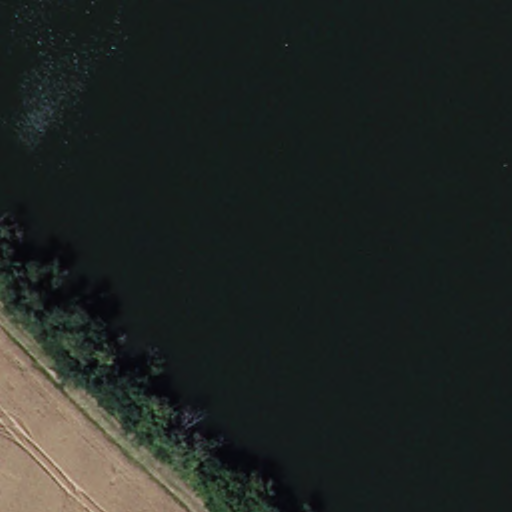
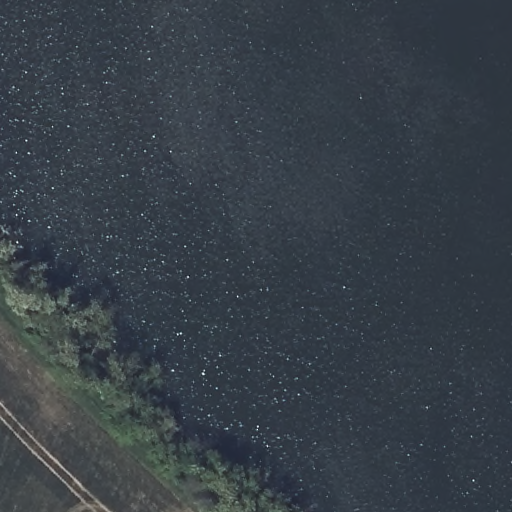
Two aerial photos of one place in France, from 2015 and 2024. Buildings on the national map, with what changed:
[]

